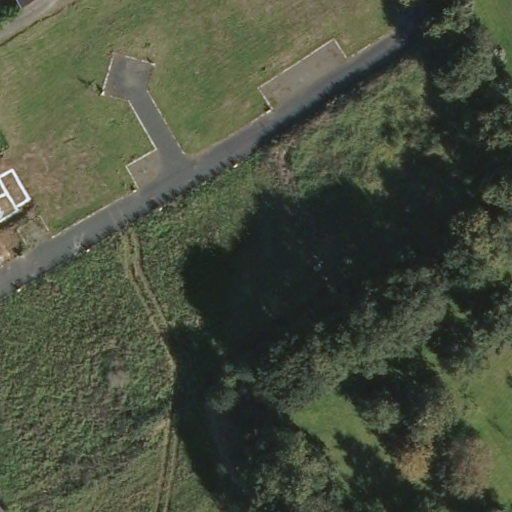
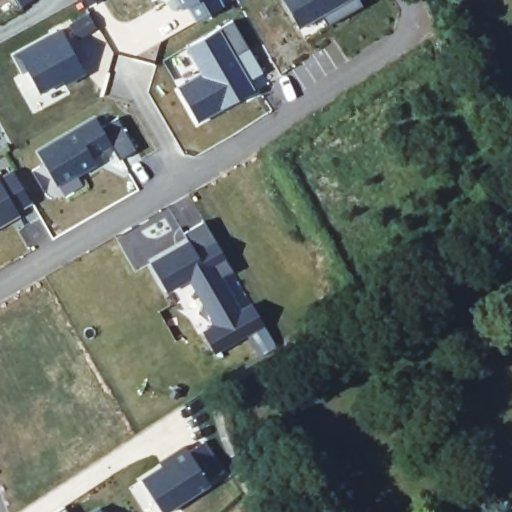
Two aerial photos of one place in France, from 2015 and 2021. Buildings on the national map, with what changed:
new [(322,11),(300,25),(285,0),(364,0),(329,22),(322,11)]
new [(240,91),(200,114),(180,80),(205,65),(189,39),(235,12),(266,64),(251,72),(256,82),(240,91)]
new [(61,17),(85,62),(65,73),(62,68),(39,80),(26,58),(22,61),(14,43),(61,17)]
new [(99,111),(105,121),(121,112),(140,145),(122,155),(114,140),(101,148),(100,147),(94,150),(99,159),(81,170),(80,168),(60,179),(40,146),(99,111)]
unchanged [(3,175),(17,168),(35,199),(21,207),(23,211),(0,224),(0,173),(1,172),(3,175)]
new [(186,235),(182,226),(204,214),(231,268),(217,275),(235,311),(250,303),(260,325),(210,353),(198,331),(212,323),(194,286),(198,283),(191,271),(163,286),(147,255),(172,242),(186,235)]
new [(164,466),(171,459),(186,445),(191,450),(205,438),(228,464),(215,476),(217,480),(181,512),(172,512),(149,486),(167,470),(164,466)]
new [(75,507),(77,512),(65,512),(75,507)]

